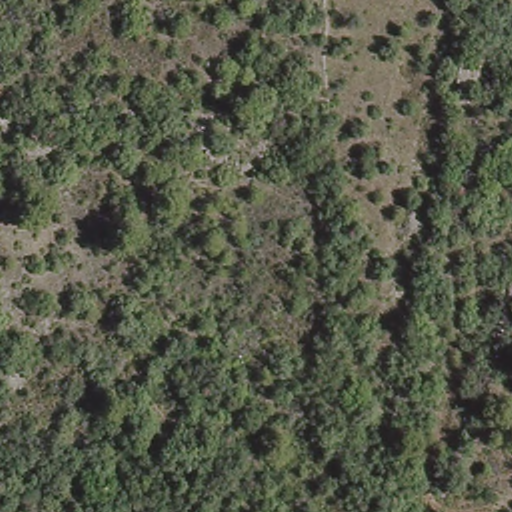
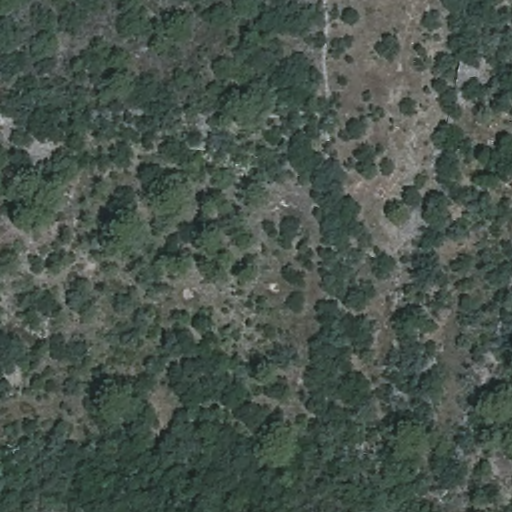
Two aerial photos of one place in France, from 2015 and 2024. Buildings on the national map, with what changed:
unchanged [(471,100),(452,93),(461,60),(482,67),(471,100)]

